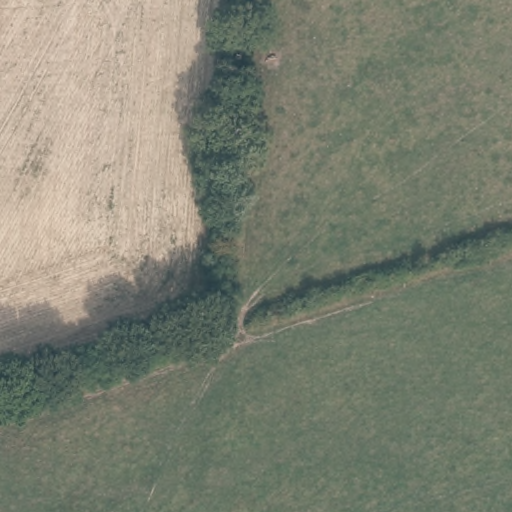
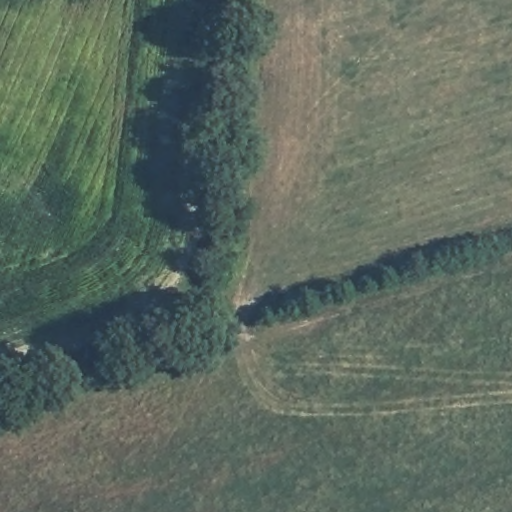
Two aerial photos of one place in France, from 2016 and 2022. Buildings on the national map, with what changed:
[]

